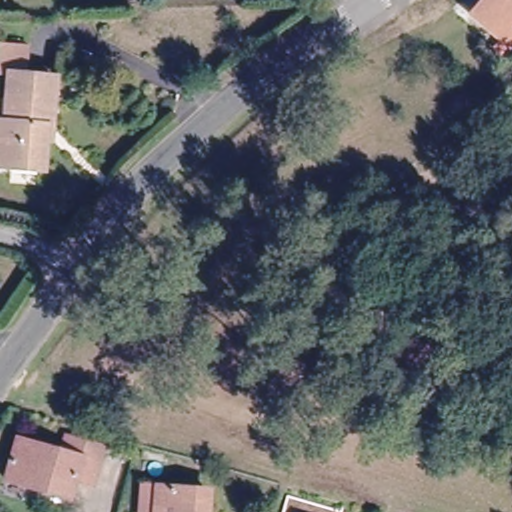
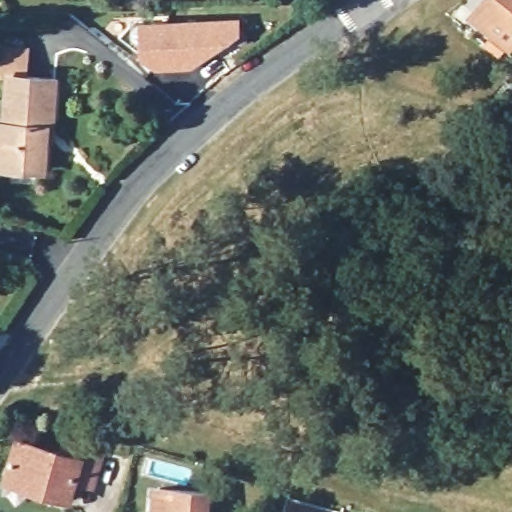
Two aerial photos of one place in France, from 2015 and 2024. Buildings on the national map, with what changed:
unchanged [(484,0),(488,0),(491,2),(493,0),(512,0),(512,40),(508,44),(472,13),(484,0)]
new [(132,22),(235,21),(235,33),(194,62),(154,65),(121,36),(132,22)]
unchanged [(0,163),(0,139),(3,139),(9,70),(0,70),(0,39),(29,41),(26,72),(54,74),(49,123),(45,122),(41,166),(0,163)]
unchanged [(512,266),(512,377),(441,378),(427,289),(489,248),(512,266)]
unchanged [(5,474),(16,436),(61,449),(65,434),(102,444),(92,479),(74,474),(69,493),(5,474)]
unchanged [(144,512),(146,482),(162,483),(211,487),(209,512),(144,512)]
unchanged [(303,512),(301,512),(301,511),(303,512)]

